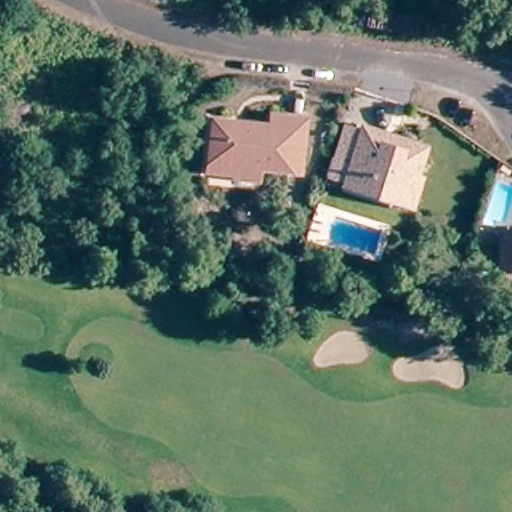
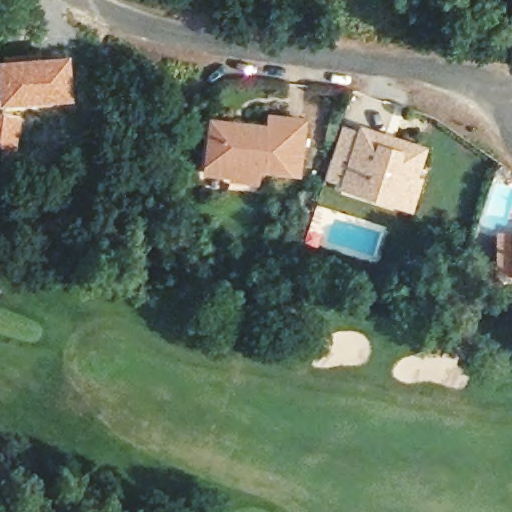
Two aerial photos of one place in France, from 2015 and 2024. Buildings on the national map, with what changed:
new [(69,53),(72,101),(0,106),(0,58),(69,53)]
new [(22,116),(15,152),(0,149),(0,112),(22,116)]
unchanged [(233,172),(205,169),(210,117),(233,120),(246,121),(268,123),(269,112),(304,116),(298,171),(258,167),(257,175),(233,172)]
unchanged [(415,184),(401,180),(395,198),(347,185),(350,178),(330,172),(341,135),(360,141),(362,134),(382,139),(396,144),(423,151),(415,184)]
unchanged [(421,186),(413,213),(345,195),(347,185),(395,198),(401,180),(415,184),(421,186)]
unchanged [(497,228),(512,228),(512,266),(496,266),(497,228)]

